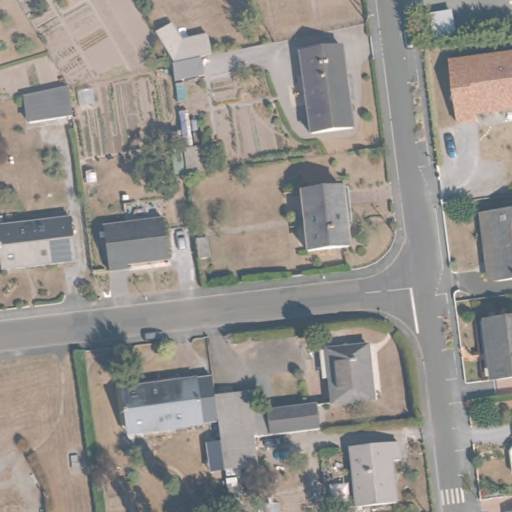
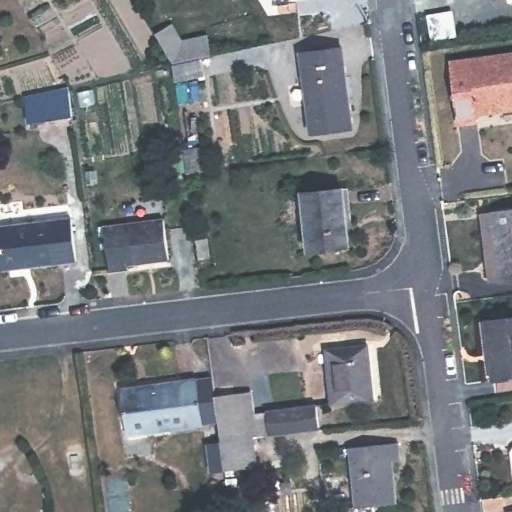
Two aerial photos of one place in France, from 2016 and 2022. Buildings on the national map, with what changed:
unchanged [(166,70),(164,53),(142,19),(160,9),(172,27),(197,22),(201,45),(192,47),(195,63),(166,70)]
unchanged [(341,44),(352,125),(312,131),(300,50),(341,44)]
unchanged [(457,122),(448,61),(512,53),(512,113),(457,122)]
unchanged [(60,91),(64,120),(24,126),(20,99),(60,91)]
unchanged [(198,139),(200,165),(184,167),(180,141),(198,139)]
unchanged [(347,186),(355,245),(313,251),(305,192),(347,186)]
unchanged [(512,208),(512,279),(508,279),(498,210),(512,208)]
unchanged [(491,282),(481,212),(498,210),(508,279),(491,282)]
unchanged [(168,215),(175,264),(153,267),(151,260),(108,265),(103,224),(168,215)]
unchanged [(79,263),(4,273),(0,243),(0,226),(74,217),(79,263)]
unchanged [(206,231),(209,251),(196,252),(193,232),(206,231)]
unchanged [(512,320),(512,382),(499,383),(491,323),(512,320)]
unchanged [(370,347),(376,403),(333,406),(328,351),(370,347)]
unchanged [(200,385),(206,434),(172,438),(170,428),(129,434),(124,395),(200,385)]
unchanged [(261,466),(227,471),(223,441),(217,398),(236,396),(241,439),(257,437),(261,466)]
unchanged [(315,404),(318,430),(273,435),(270,410),(315,404)]
unchanged [(400,444),(402,463),(393,464),(397,503),(358,506),(353,448),(400,444)]

